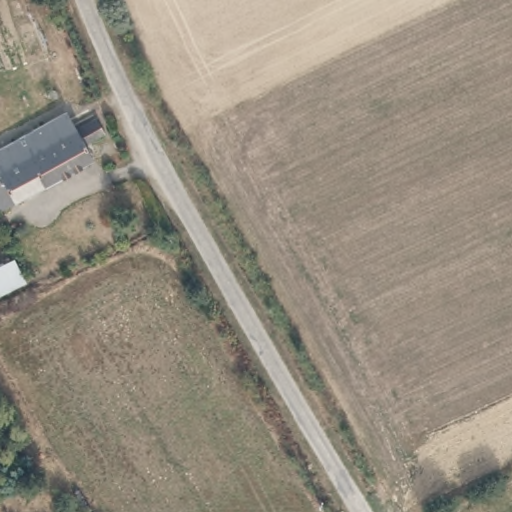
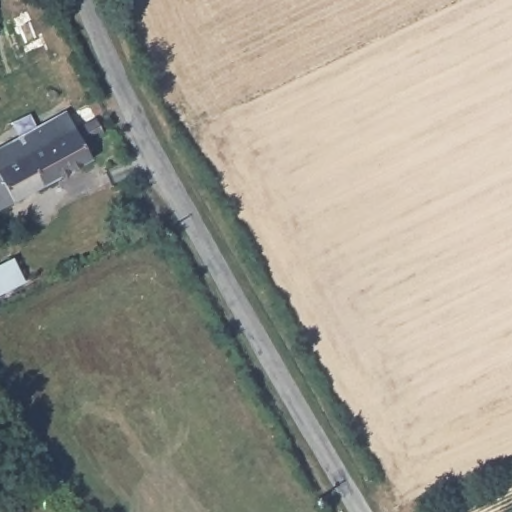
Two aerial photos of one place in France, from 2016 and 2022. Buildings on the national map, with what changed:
unchanged [(73,131),(93,121),(99,133),(80,144),(86,159),(0,206),(0,145),(61,112),(73,131)]
unchanged [(0,292),(0,291),(0,269),(10,287),(0,292)]

